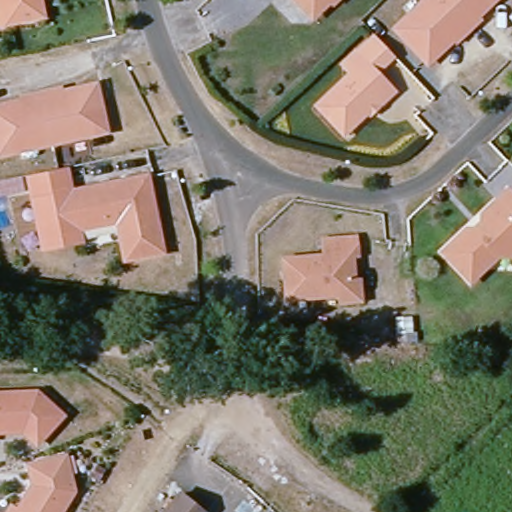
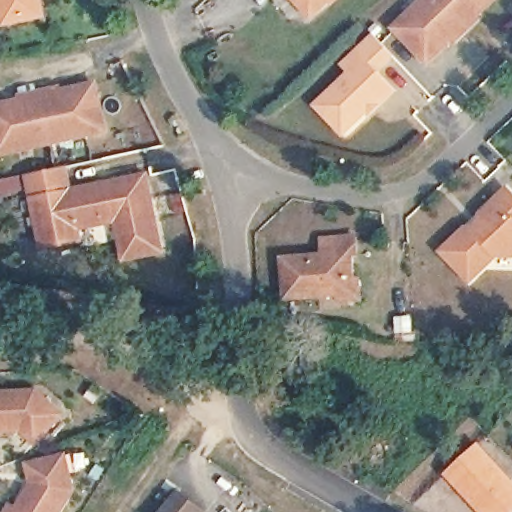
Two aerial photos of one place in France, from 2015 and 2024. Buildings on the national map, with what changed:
unchanged [(0,0),(44,0),(49,24),(11,32),(5,33),(0,12),(0,0)]
unchanged [(327,16),(314,16),(299,0),(344,0),(327,16)]
unchanged [(430,68),(398,34),(433,0),(502,0),(478,23),(467,33),(456,44),(430,68)]
unchanged [(396,67),(378,84),(393,100),(347,144),(321,117),(355,85),(347,76),(360,64),(377,47),(396,67)]
unchanged [(52,151),(0,163),(0,114),(24,109),(42,105),(61,101),(96,93),(106,139),(52,151)]
unchanged [(70,170),(75,195),(151,179),(167,254),(130,261),(122,224),(82,232),(85,243),(48,251),(33,178),(70,170)]
unchanged [(481,224),(482,216),(507,192),(512,197),(512,256),(497,256),(470,282),(443,254),(466,231),(474,231),(481,224)]
unchanged [(363,304),(346,305),(345,297),(290,302),(287,264),(327,260),(326,244),(358,242),(360,259),(352,259),(354,287),(361,287),(363,304)]
unchanged [(48,405),(47,405),(61,418),(56,423),(36,445),(22,432),(0,433),(0,395),(36,394),(48,405)]
demolished [(146,422),(166,438),(147,467),(127,449),(146,422)]
new [(479,512),(444,474),(478,442),(512,481),(512,512),(479,512)]
unchanged [(37,467),(67,460),(75,458),(79,477),(82,493),(71,512),(26,512),(42,486),(37,467)]
unchanged [(152,512),(168,494),(190,512),(152,512)]
unchanged [(18,512),(20,508),(26,512),(18,512)]

